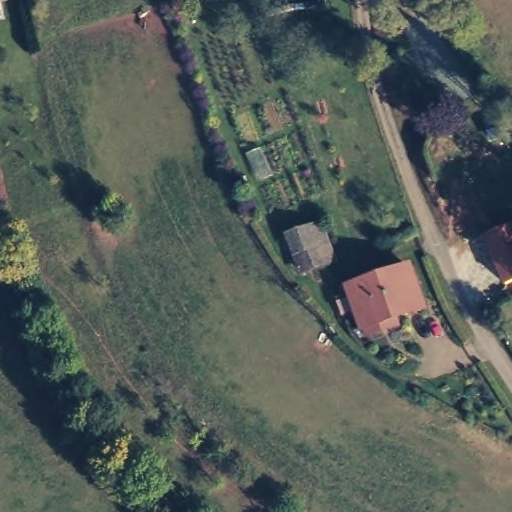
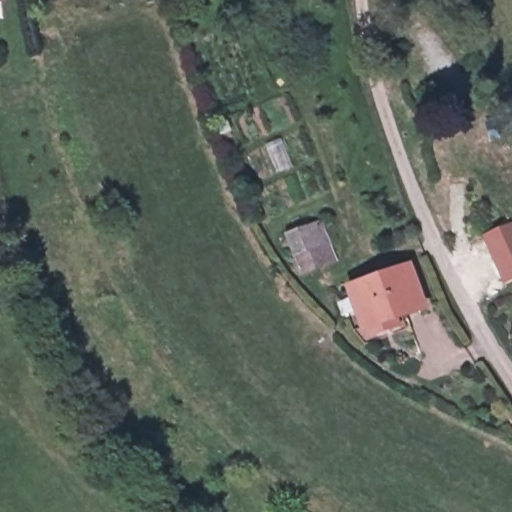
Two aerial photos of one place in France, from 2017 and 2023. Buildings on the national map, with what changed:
unchanged [(281,243),(290,237),(317,221),(326,236),(317,242),(326,258),(308,268),(298,250),(288,256),(281,243)]
unchanged [(350,284),(405,254),(427,292),(372,322),(350,284)]

